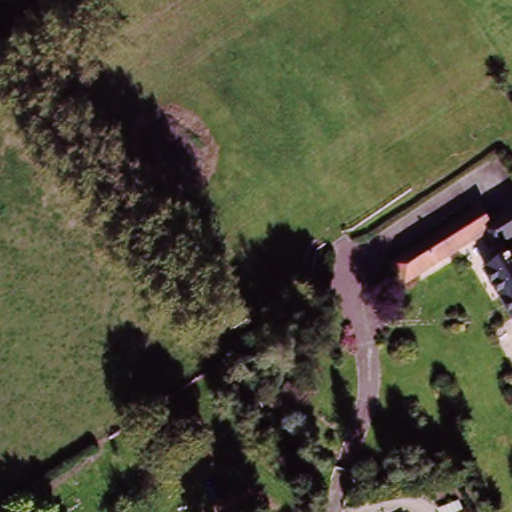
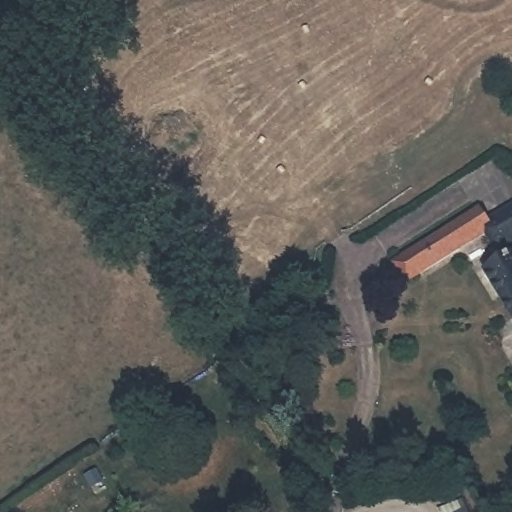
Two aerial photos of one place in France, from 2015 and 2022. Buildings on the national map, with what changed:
unchanged [(490,227),(485,220),(512,202),(512,239),(511,240),(512,241),(512,305),(486,265),(501,255),(485,231),(490,227)]
unchanged [(432,235),(428,227),(439,221),(445,227),(477,207),(485,220),(490,227),(485,231),(414,278),(400,257),(417,245),(432,235)]

